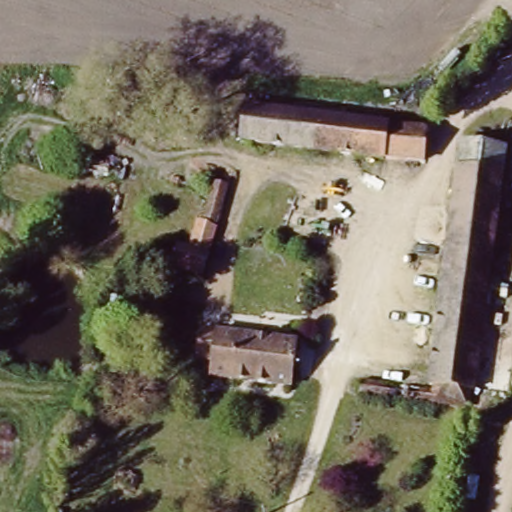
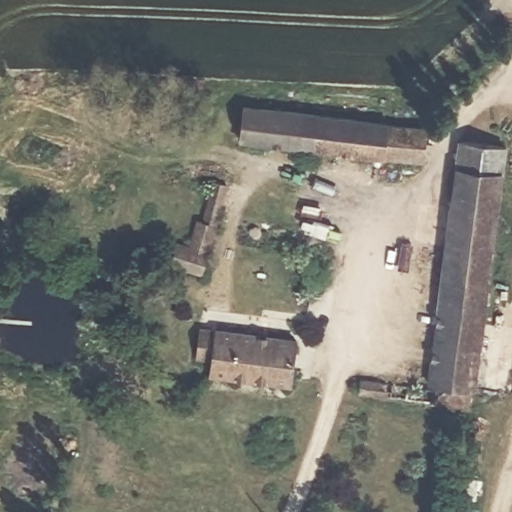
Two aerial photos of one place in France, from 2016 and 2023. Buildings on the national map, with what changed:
unchanged [(382,117),(376,154),(242,135),(246,101),(382,117)]
unchanged [(410,157),(376,154),(382,117),(414,121),(410,157)]
unchanged [(362,368),(430,376),(458,130),(464,122),(502,130),(472,397),(357,384),(362,368)]
unchanged [(192,238),(198,206),(207,206),(213,180),(237,179),(200,272),(170,264),(175,239),(192,238)]
unchanged [(215,362),(193,358),(198,323),(297,340),(288,395),(212,380),(215,362)]

